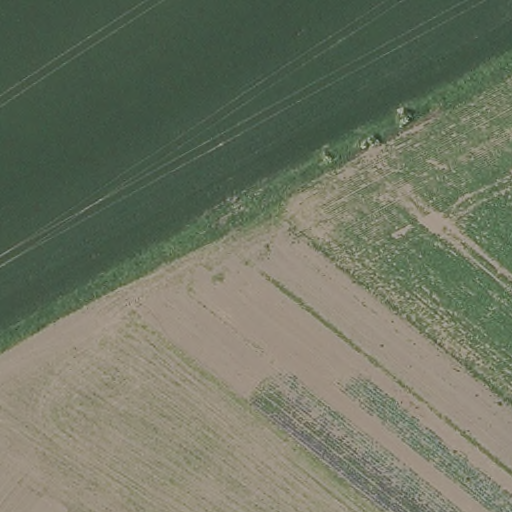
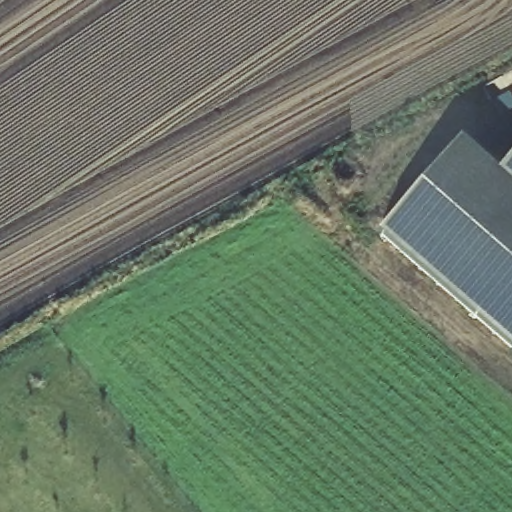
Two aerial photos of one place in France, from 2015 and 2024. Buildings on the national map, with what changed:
new [(459,146),(497,178),(512,160),(512,353),(379,241),(459,146)]

